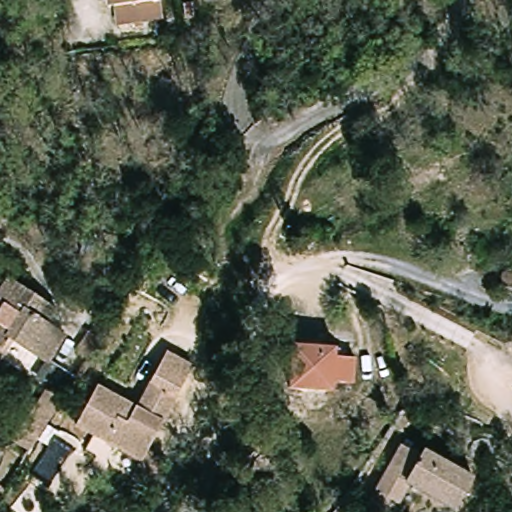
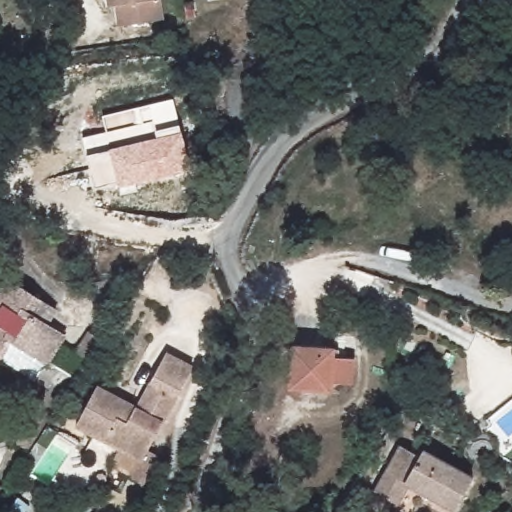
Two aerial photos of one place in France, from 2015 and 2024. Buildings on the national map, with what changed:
unchanged [(118,6),(111,6),(110,0),(160,0),(164,21),(123,28),(118,6)]
new [(83,136),(107,131),(103,115),(174,98),(182,131),(191,169),(119,188),(118,182),(95,187),(88,155),(83,136)]
unchanged [(29,285),(23,302),(43,313),(16,364),(0,356),(0,270),(29,285)]
unchanged [(157,483),(140,475),(149,456),(81,425),(100,386),(141,405),(155,375),(173,336),(200,349),(153,446),(170,454),(157,483)]
unchanged [(286,385),(295,345),(332,351),(331,357),(354,362),(349,384),(331,380),(329,392),(286,385)]
unchanged [(366,508),(376,488),(399,444),(420,454),(425,445),(476,470),(459,505),(409,482),(399,500),(393,512),(375,512),(366,508)]
unchanged [(9,487),(0,497),(0,478),(9,487)]

